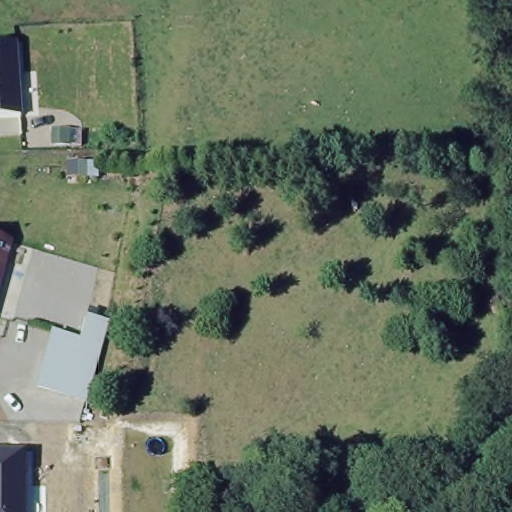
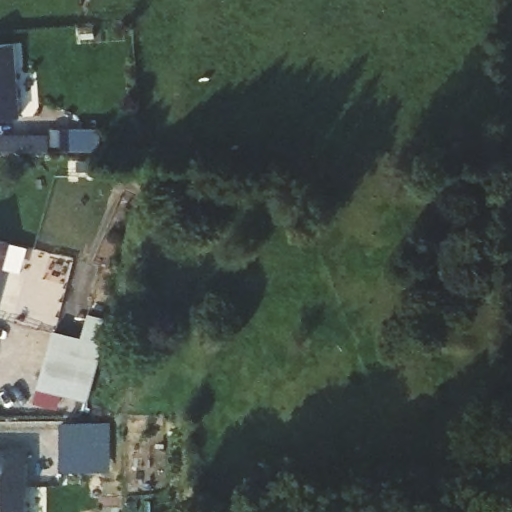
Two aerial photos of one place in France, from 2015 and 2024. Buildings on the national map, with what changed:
unchanged [(21,116),(0,118),(0,44),(16,43),(21,116)]
unchanged [(0,240),(8,243),(0,274),(0,240)]
unchanged [(110,321),(87,403),(38,388),(53,332),(81,339),(88,315),(110,321)]
new [(110,427),(110,472),(101,472),(61,472),(61,427),(101,427),(110,427)]
unchanged [(28,512),(0,512),(0,450),(25,450),(28,512)]

